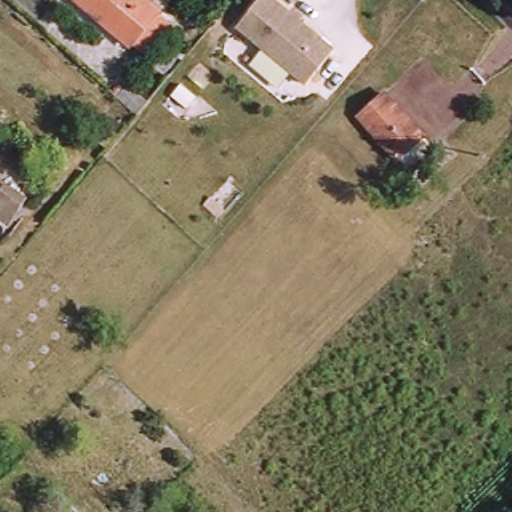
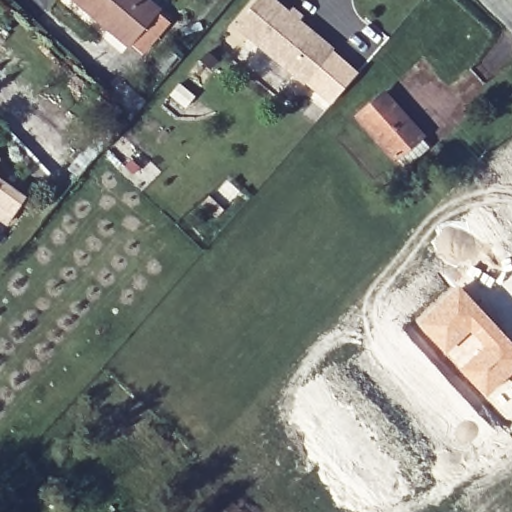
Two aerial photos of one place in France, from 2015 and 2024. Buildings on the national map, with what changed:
unchanged [(135,42),(86,0),(153,0),(163,8),(172,17),(144,49),(135,42)]
unchanged [(332,51),(305,84),(235,27),(258,0),(271,0),(332,51)]
unchanged [(142,109),(124,92),(134,81),(153,96),(142,109)]
unchanged [(409,152),(406,155),(365,109),(390,86),(432,132),(430,135),(436,141),(416,159),(409,152)]
unchanged [(1,161),(0,163),(0,161),(1,161)]
unchanged [(0,207),(0,180),(26,199),(14,217),(7,225),(0,220),(0,207)]
new [(460,284),(512,341),(512,374),(485,398),(452,362),(417,322),(460,284)]

